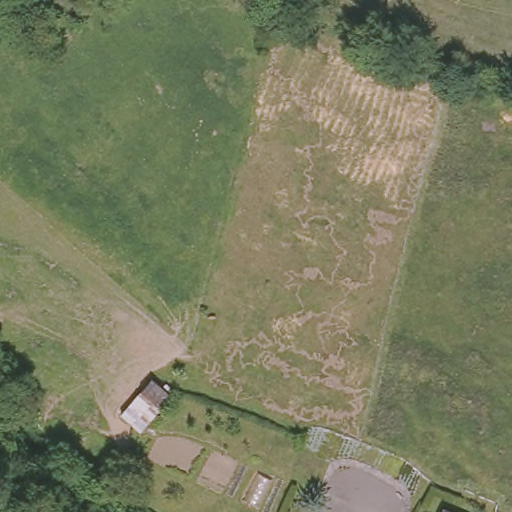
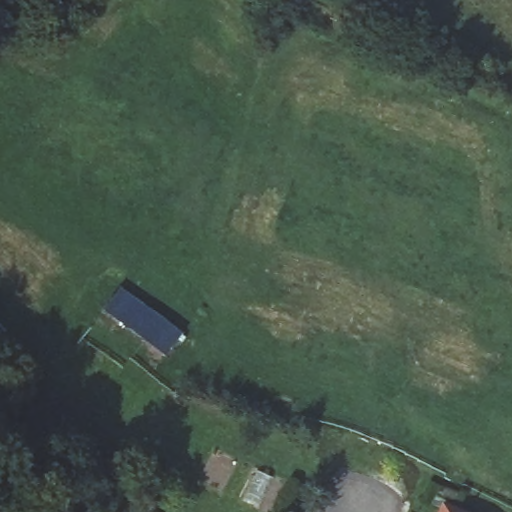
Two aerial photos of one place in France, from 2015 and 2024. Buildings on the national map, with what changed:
new [(182,337),(162,361),(102,310),(123,286),(182,337)]
unchanged [(153,375),(175,395),(142,433),(120,412),(153,375)]
unchanged [(465,512),(448,512),(454,504),(465,512)]

